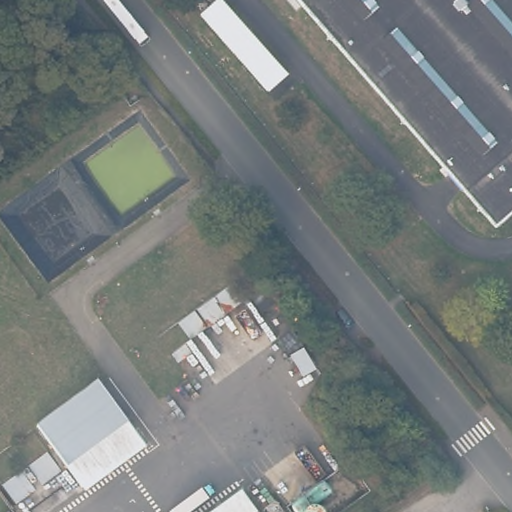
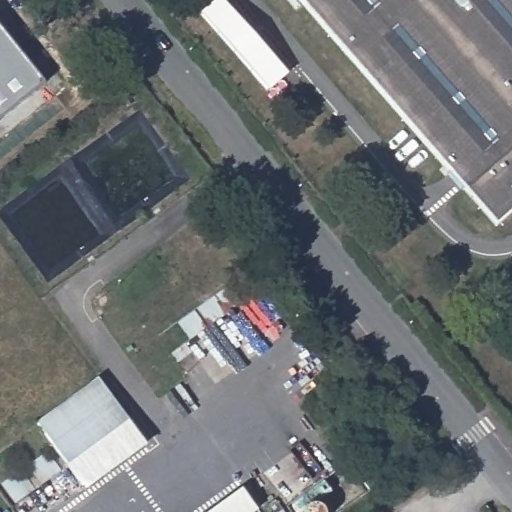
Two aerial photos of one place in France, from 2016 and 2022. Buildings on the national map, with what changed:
unchanged [(501,232),(296,0),(512,0),(512,222),(501,232)]
new [(0,25),(45,81),(0,117),(0,25)]
unchanged [(36,422),(99,377),(144,440),(81,485),(36,422)]
unchanged [(259,508),(254,512),(213,512),(245,489),(259,508)]

